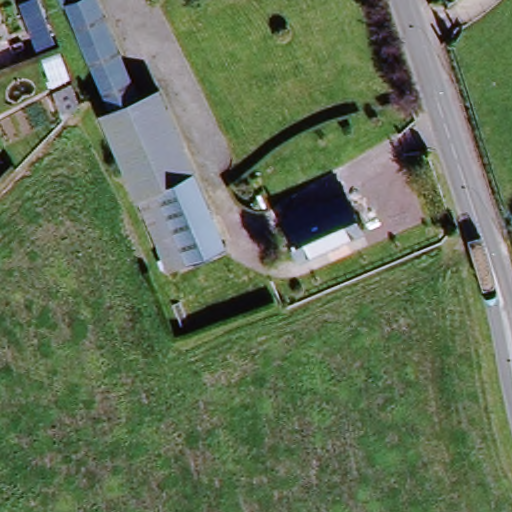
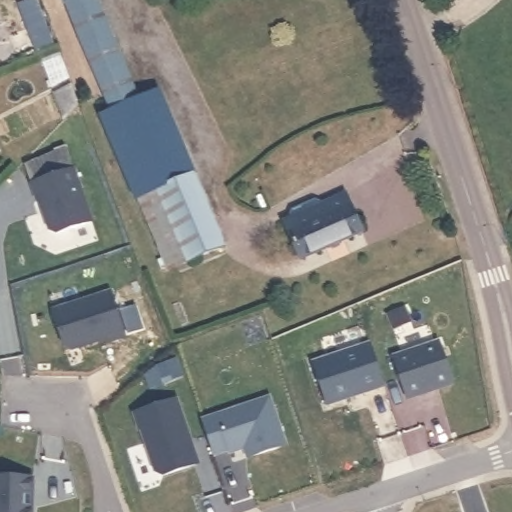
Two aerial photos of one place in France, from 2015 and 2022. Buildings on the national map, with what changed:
unchanged [(138,103),(111,115),(70,4),(81,0),(98,0),(138,103)]
unchanged [(193,174),(157,190),(133,201),(103,118),(111,115),(138,103),(163,91),(193,174)]
unchanged [(220,245),(183,259),(157,190),(193,174),(220,245)]
new [(76,175),(92,226),(58,237),(51,234),(42,203),(39,204),(34,188),(76,175)]
unchanged [(301,260),(289,232),(283,218),(346,193),(351,205),(362,233),(301,260)]
new [(105,296),(118,338),(103,343),(102,340),(66,350),(60,347),(50,313),(105,296)]
new [(439,344),(452,385),(407,399),(394,358),(439,344)]
new [(371,345),(384,386),(328,404),(315,363),(371,345)]
new [(269,399),(286,446),(247,459),(244,450),(229,455),(228,452),(214,457),(201,423),(269,399)]
new [(176,401),(199,464),(164,477),(157,473),(142,432),(140,432),(134,416),(176,401)]
new [(40,483),(39,512),(0,512),(0,482),(40,483)]

